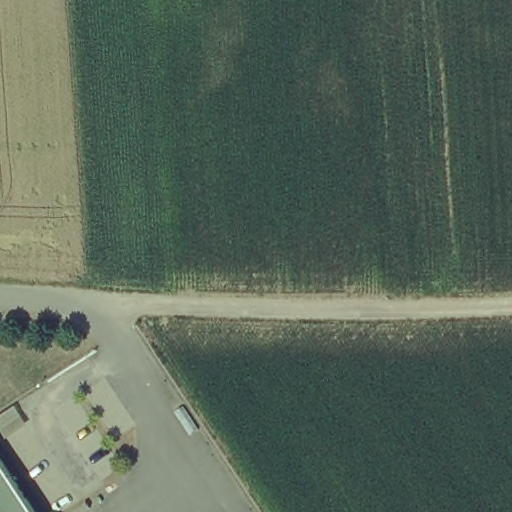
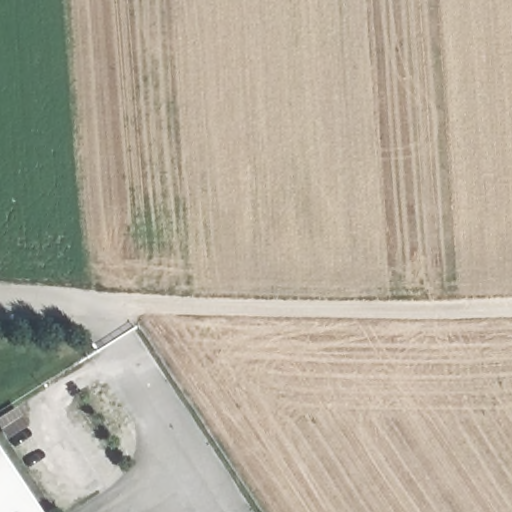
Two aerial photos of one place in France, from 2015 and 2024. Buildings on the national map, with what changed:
unchanged [(0,456),(37,512),(0,512),(0,456)]

